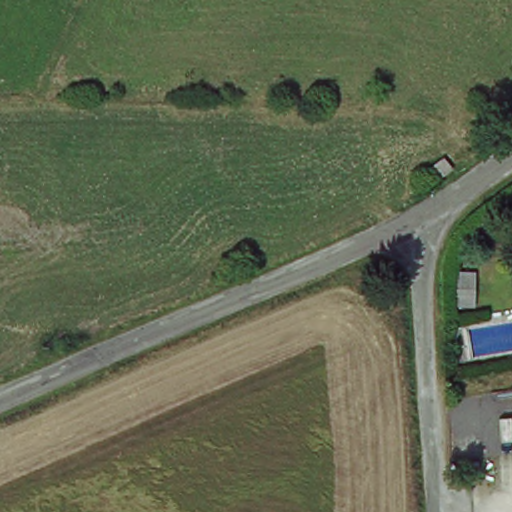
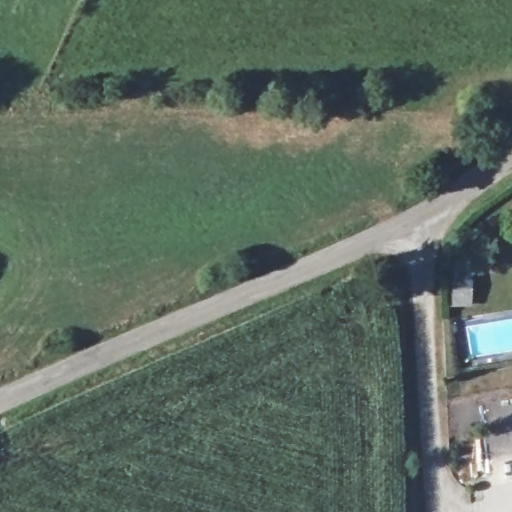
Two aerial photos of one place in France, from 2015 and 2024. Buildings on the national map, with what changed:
unchanged [(418,179),(439,162),(452,177),(430,195),(418,179)]

